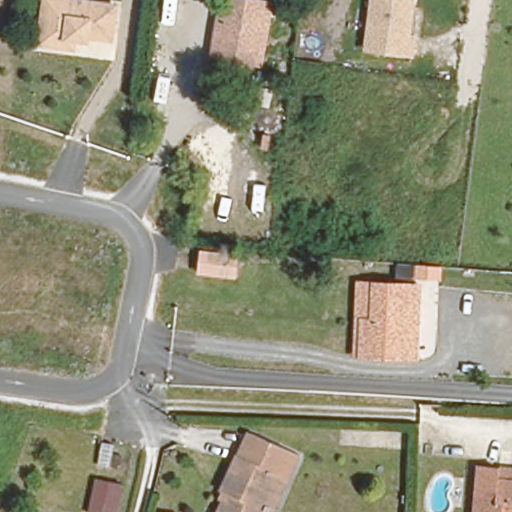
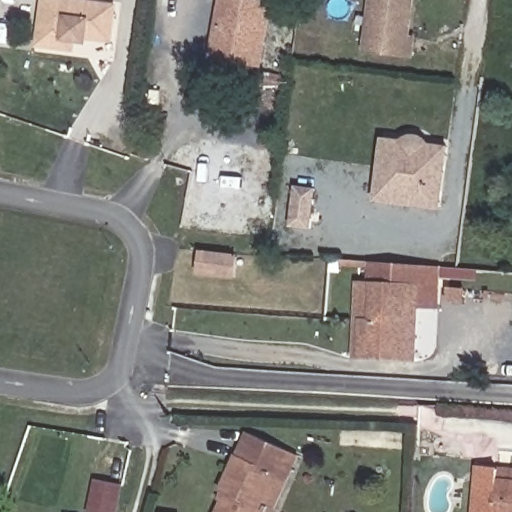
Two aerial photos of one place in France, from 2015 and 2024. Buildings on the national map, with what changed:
unchanged [(268,7),(257,69),(213,61),(223,0),(226,0),(268,7)]
unchanged [(409,62),(361,52),(368,0),(417,0),(409,62)]
unchanged [(118,19),(113,54),(89,51),(89,57),(75,54),(74,62),(41,58),(46,12),(118,19)]
new [(373,203),(381,137),(403,140),(409,135),(414,135),(421,136),(424,137),(429,143),(451,146),(442,211),(373,203)]
new [(294,185),(314,187),(309,226),(289,224),(294,185)]
unchanged [(196,248),(238,249),(237,278),(194,276),(196,248)]
unchanged [(419,360),(365,357),(357,357),(361,285),(378,287),(423,290),(419,360)]
unchanged [(218,495),(245,431),(304,457),(277,512),(275,512),(269,509),(268,512),(218,512),(224,499),(218,495)]
unchanged [(111,442),(109,452),(120,454),(118,470),(95,466),(100,441),(111,442)]
unchanged [(502,512),(477,512),(481,469),(504,471),(512,471),(512,506),(502,506),(502,512)]
unchanged [(112,512),(101,512),(86,508),(94,476),(119,481),(112,512)]

